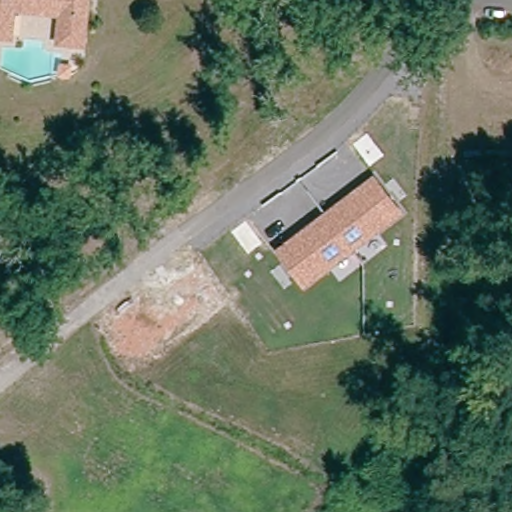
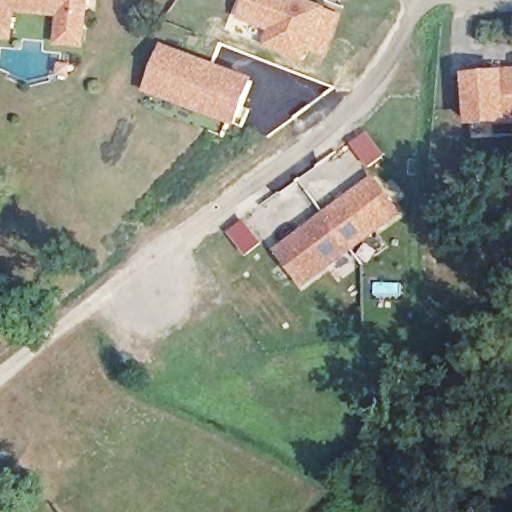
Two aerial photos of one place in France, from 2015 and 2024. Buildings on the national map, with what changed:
unchanged [(54,54),(56,24),(14,19),(10,47),(0,46),(0,0),(84,0),(77,56),(54,54)]
new [(271,30),(240,20),(247,0),(310,0),(329,7),(308,63),(265,46),(271,30)]
new [(257,80),(240,126),(146,91),(164,44),(257,80)]
new [(504,69),(512,68),(512,125),(468,127),(464,75),(504,71),(504,69)]
unchanged [(403,212),(303,289),(275,250),(373,175),(403,212)]

